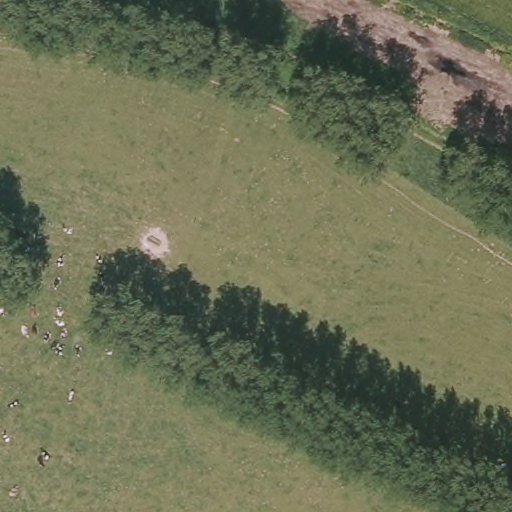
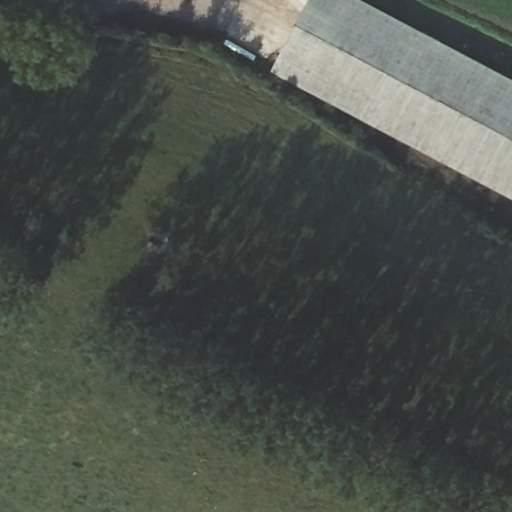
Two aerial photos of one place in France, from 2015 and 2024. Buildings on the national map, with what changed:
new [(512,86),(512,204),(272,77),(313,0),(352,0),(512,86)]

